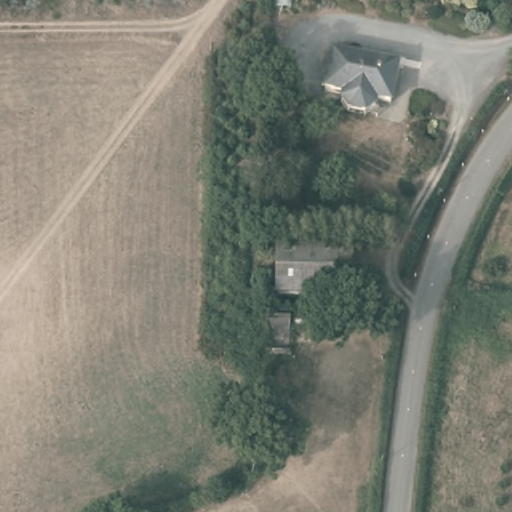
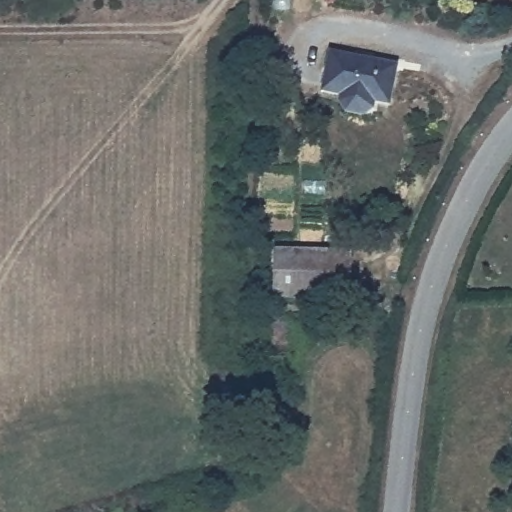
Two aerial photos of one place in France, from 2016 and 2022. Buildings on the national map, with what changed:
unchanged [(366,115),(349,111),(343,101),(344,94),(325,88),(336,51),(401,67),(392,105),(377,102),(376,109),(366,115)]
unchanged [(352,297),(279,295),(279,246),(353,248),(352,297)]

